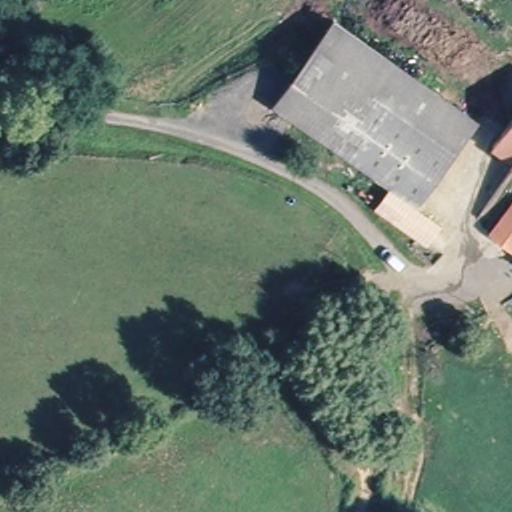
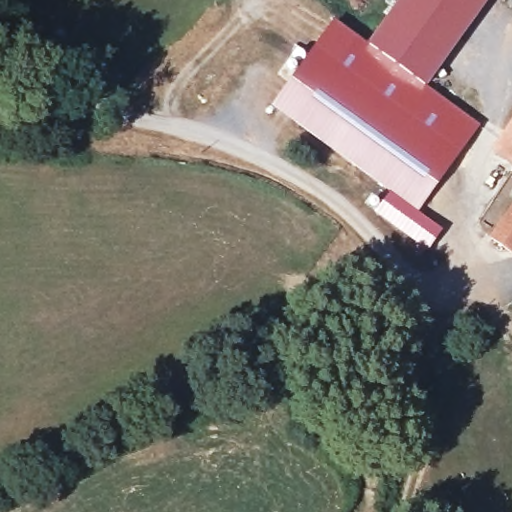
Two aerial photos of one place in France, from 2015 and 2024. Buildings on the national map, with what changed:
new [(400,0),(490,0),(427,87),(368,45),(400,0)]
unchanged [(275,108),(300,75),(336,29),(480,133),(417,211),(397,197),(275,108)]
unchanged [(496,155),(512,135),(512,167),(496,155)]
unchanged [(447,233),(428,255),(380,220),(387,210),(397,197),(417,211),(417,212),(447,233)]
unchanged [(512,258),(485,239),(512,202),(512,257),(512,258)]

